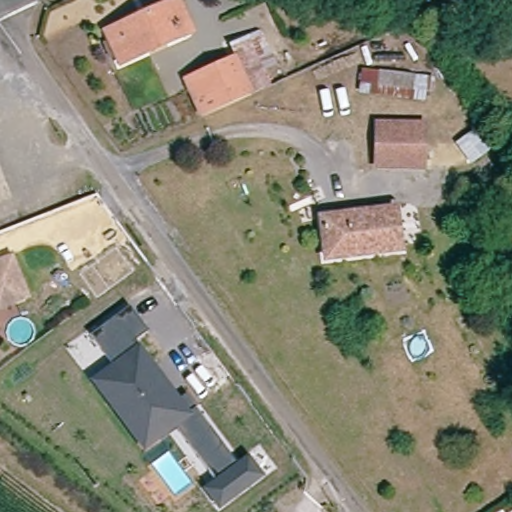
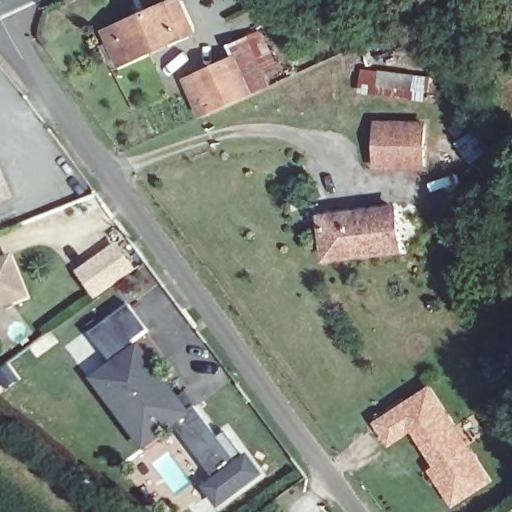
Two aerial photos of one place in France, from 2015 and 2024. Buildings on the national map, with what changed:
unchanged [(102,39),(174,5),(189,38),(117,72),(102,39)]
unchanged [(251,100),(234,62),(229,51),(255,39),(269,70),(262,73),(270,91),(251,100)]
unchanged [(199,123),(199,122),(183,86),(234,62),(251,100),(199,123)]
unchanged [(429,85),(429,95),(423,95),(421,104),(359,97),(361,77),(429,85)]
unchanged [(374,167),(375,124),(422,125),(422,168),(374,167)]
unchanged [(394,215),(399,254),(323,263),(319,224),(394,215)]
new [(116,242),(136,270),(95,300),(75,272),(116,242)]
unchanged [(24,297),(0,307),(0,261),(9,258),(24,297)]
unchanged [(149,331),(135,341),(179,397),(185,392),(237,461),(246,453),(264,476),(217,511),(200,488),(214,477),(177,428),(143,452),(89,377),(110,362),(90,334),(129,305),(149,331)]
new [(430,384),(494,480),(452,508),(427,471),(434,466),(411,432),(388,447),(372,422),(430,384)]

